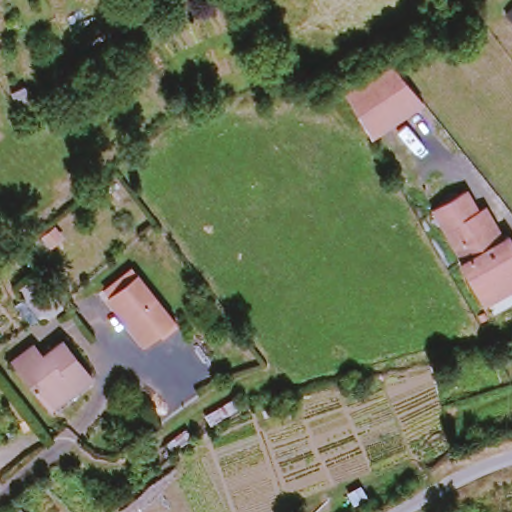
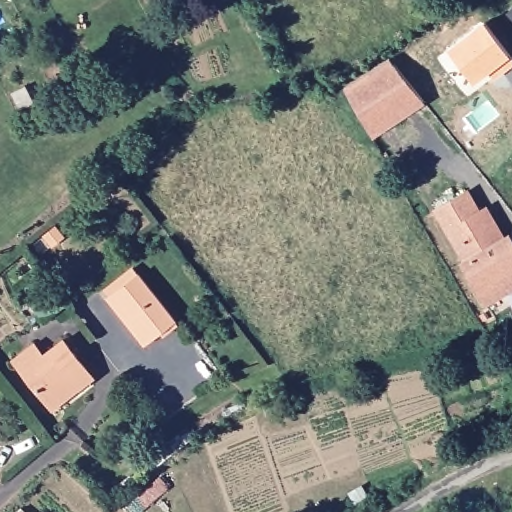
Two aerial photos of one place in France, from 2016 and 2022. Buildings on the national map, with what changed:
new [(474,85),(449,52),(485,25),(512,60),(512,68),(503,75),(494,82),(488,74),(474,85)]
unchanged [(339,89),(386,60),(416,97),(364,131),(339,89)]
unchanged [(481,298),(457,260),(461,258),(430,208),(459,189),(470,207),(479,202),(496,232),(503,227),(512,243),(512,280),(508,282),(481,298)]
unchanged [(145,343),(109,296),(138,273),(174,320),(145,343)]
unchanged [(38,403),(6,361),(26,346),(36,358),(58,342),(85,379),(68,392),(43,411),(38,403)]

